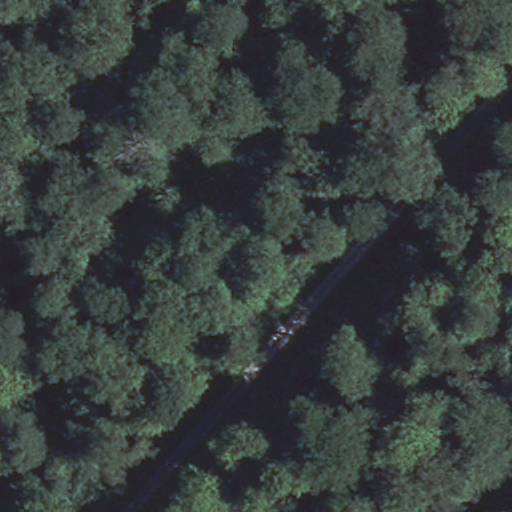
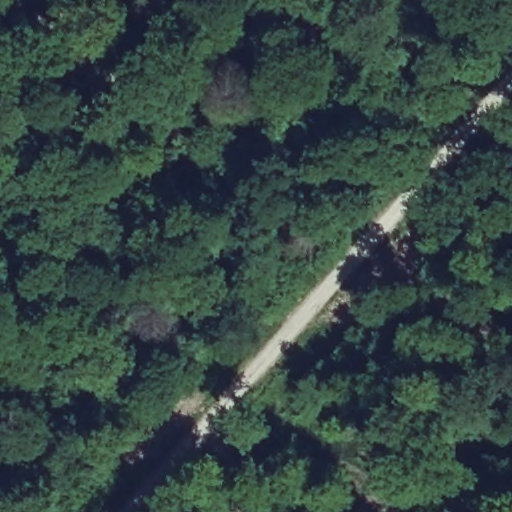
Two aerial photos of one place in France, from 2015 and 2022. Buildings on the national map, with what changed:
[]

